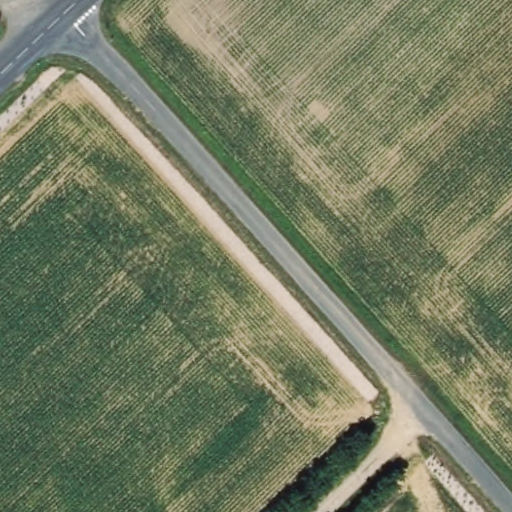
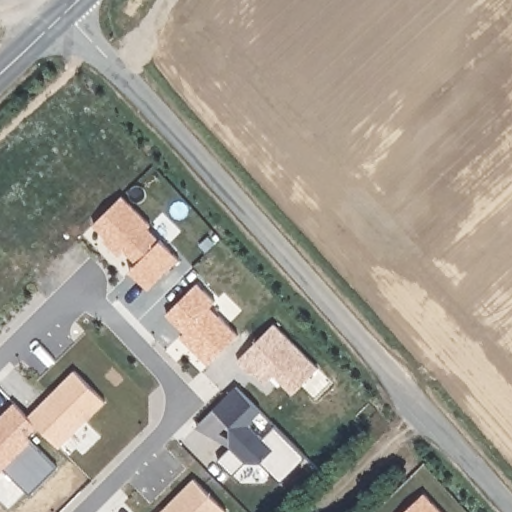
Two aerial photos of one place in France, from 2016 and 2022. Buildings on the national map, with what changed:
new [(179,258),(147,288),(130,271),(137,262),(125,250),(121,256),(104,239),(106,237),(94,224),(123,195),(179,258)]
new [(29,415),(74,370),(105,400),(59,445),(39,424),(26,437),(31,442),(56,465),(29,492),(5,467),(0,471),(0,414),(13,401),(29,415)]
new [(213,408),(236,386),(261,410),(249,423),(264,438),(275,427),(305,455),(282,481),(263,462),(245,461),(232,473),(219,460),(232,446),(231,445),(196,426),(213,408)]
new [(228,511),(227,512),(161,512),(195,478),(228,511)]
new [(430,512),(383,512),(408,488),(430,512)]

